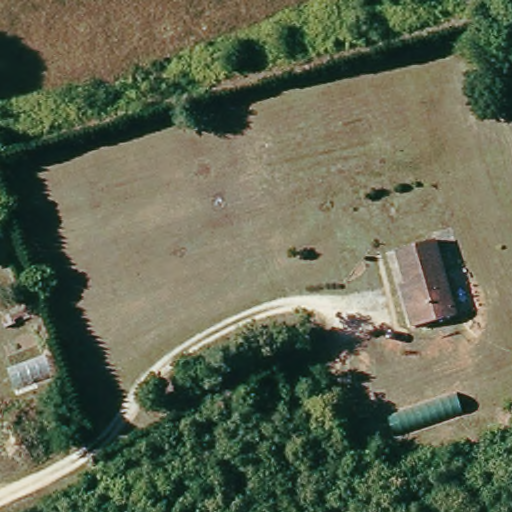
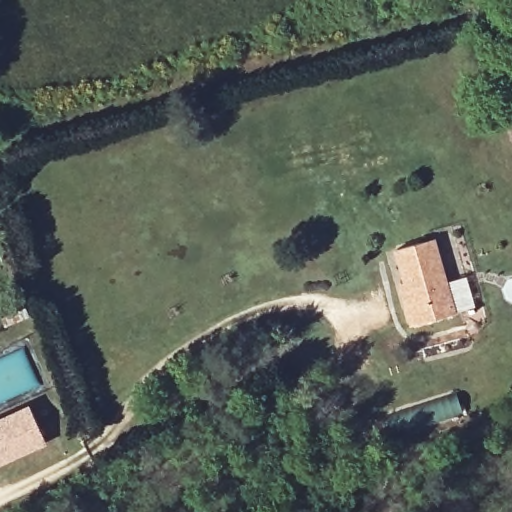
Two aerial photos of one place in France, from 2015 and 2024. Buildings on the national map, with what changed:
unchanged [(411,287),(402,255),(439,244),(460,320),(418,331),(413,315),(418,312),(413,313),(406,289),(411,287)]
unchanged [(23,265),(27,275),(18,277),(14,268),(23,265)]
new [(34,405),(49,439),(0,461),(0,420),(34,405)]

